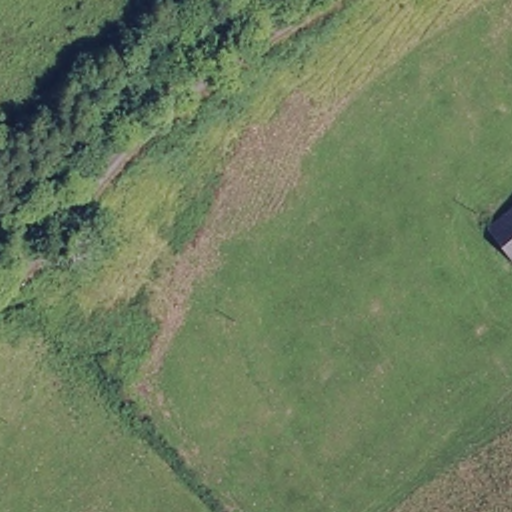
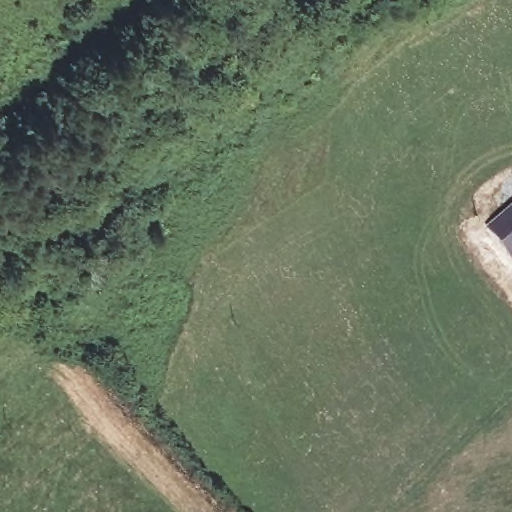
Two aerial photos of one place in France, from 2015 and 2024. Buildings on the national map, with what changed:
unchanged [(487,232),(512,213),(512,262),(487,232)]

